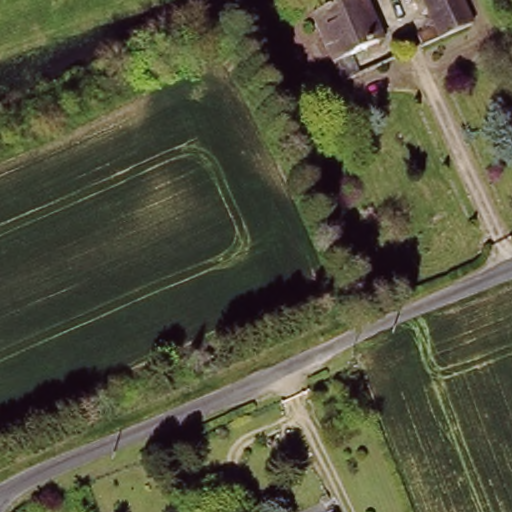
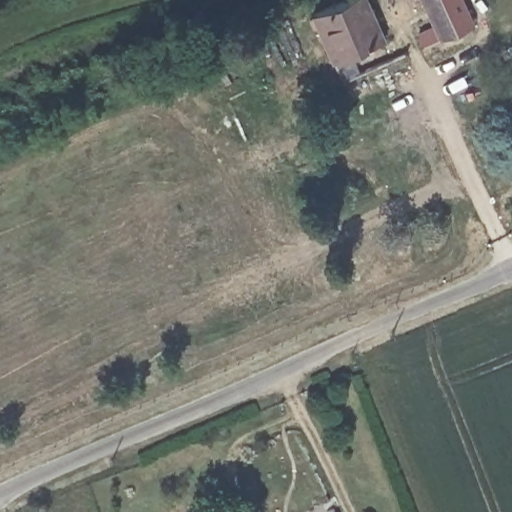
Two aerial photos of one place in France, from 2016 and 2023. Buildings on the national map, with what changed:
unchanged [(316,15),(351,0),(370,0),(387,37),(335,60),(316,15)]
unchanged [(420,28),(435,22),(425,0),(461,0),(470,20),(425,40),(420,28)]

